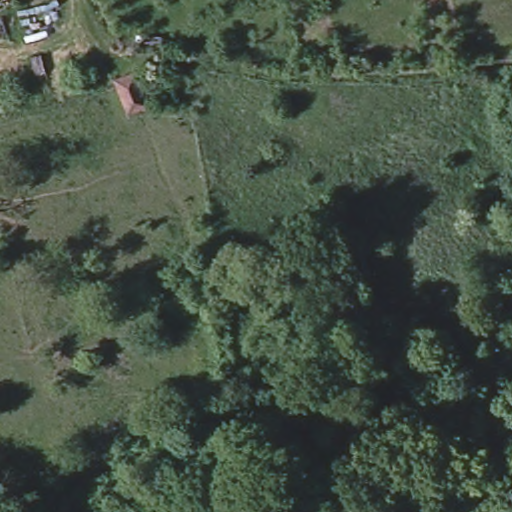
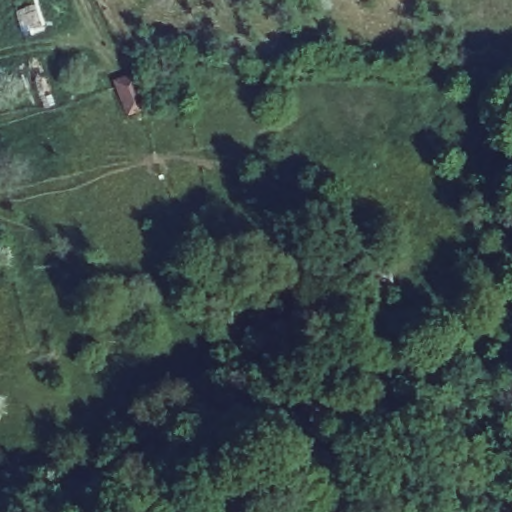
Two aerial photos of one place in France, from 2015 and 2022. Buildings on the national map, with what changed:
unchanged [(143,100),(119,109),(105,77),(128,69),(143,100)]

